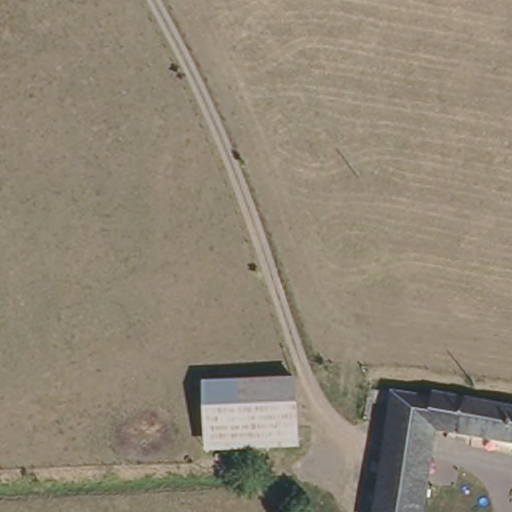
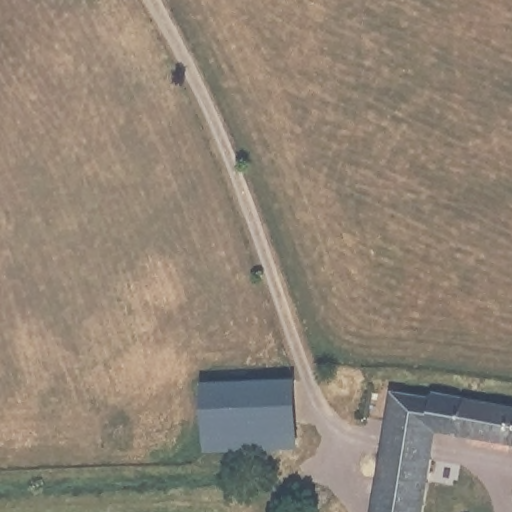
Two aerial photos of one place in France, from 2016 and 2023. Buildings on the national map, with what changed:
unchanged [(201,446),(198,378),(295,373),(297,443),(201,446)]
unchanged [(512,402),(512,444),(431,428),(421,512),(369,512),(390,382),(512,402)]

